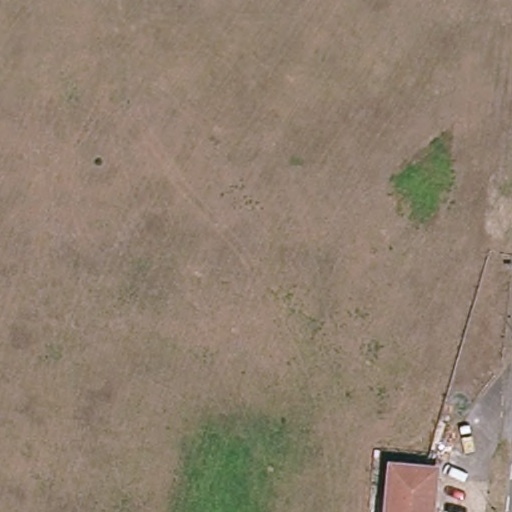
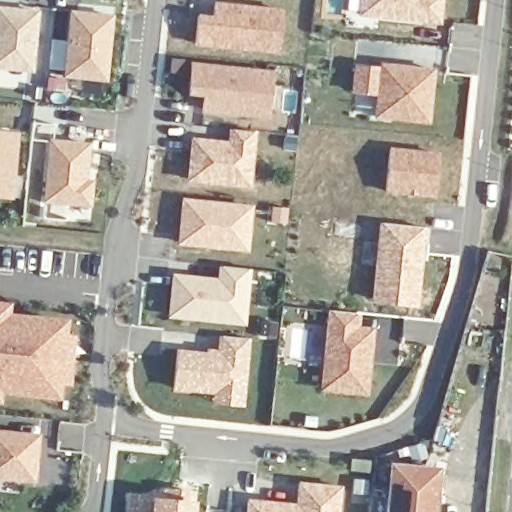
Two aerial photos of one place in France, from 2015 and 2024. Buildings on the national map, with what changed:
new [(441,25),(357,16),(359,0),(443,0),(441,25)]
new [(283,8),(279,54),(194,46),(197,14),(212,15),(212,1),(283,8)]
new [(37,14),(31,72),(0,69),(0,10),(37,14)]
new [(112,18),(105,81),(65,77),(71,14),(112,18)]
new [(275,69),(270,118),(201,112),(202,96),(187,94),(191,62),(275,69)]
new [(435,67),(428,124),(375,119),(380,62),(435,67)]
new [(228,139),(228,127),(257,130),(251,188),(187,181),(190,137),(228,139)]
new [(10,200),(0,198),(0,133),(17,135),(10,200)]
new [(50,142),(88,147),(85,183),(91,184),(89,207),(44,202),(50,142)]
new [(440,151),(436,197),(386,192),(390,147),(440,151)]
new [(251,207),(247,249),(180,242),(185,201),(251,207)]
new [(427,227),(418,307),(371,303),(378,222),(427,227)]
new [(217,277),(219,265),(251,268),(246,326),(169,318),(172,273),(217,277)]
new [(10,302),(9,312),(66,317),(65,332),(75,334),(71,384),(61,383),(60,399),(1,393),(0,403),(0,301),(10,302)]
new [(360,312),(358,326),(374,327),(368,397),(320,393),(327,309),(360,312)]
new [(175,347),(215,348),(217,333),(250,337),(244,407),(209,403),(210,397),(170,392),(175,347)]
new [(32,482),(0,479),(0,435),(37,438),(32,482)]
unchanged [(427,476),(438,477),(434,512),(389,512),(393,472),(427,476)]
new [(297,481),(342,486),(340,512),(246,512),(247,498),(296,502),(297,481)]
new [(177,495),(178,490),(196,490),(193,512),(123,512),(125,491),(177,495)]

